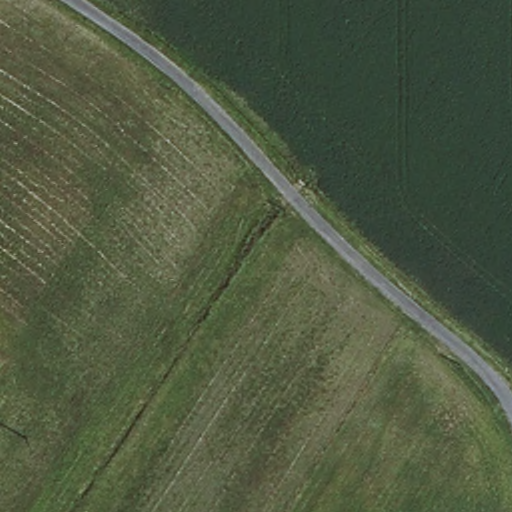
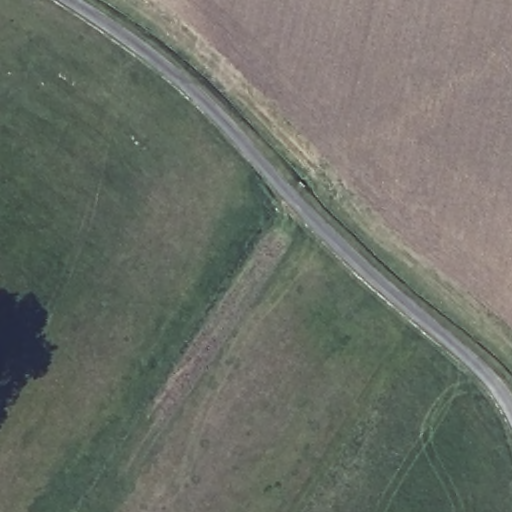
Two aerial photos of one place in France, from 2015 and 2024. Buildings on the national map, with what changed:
[]

